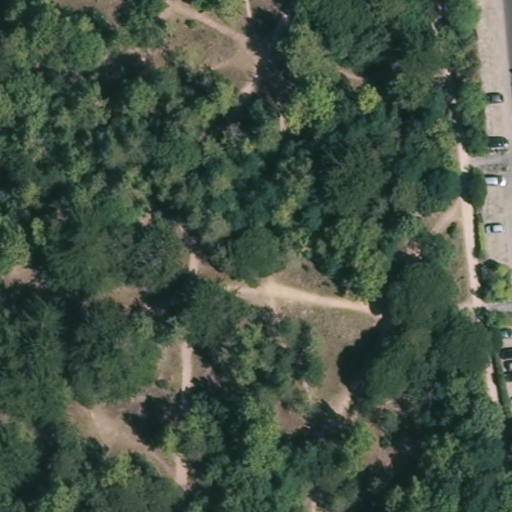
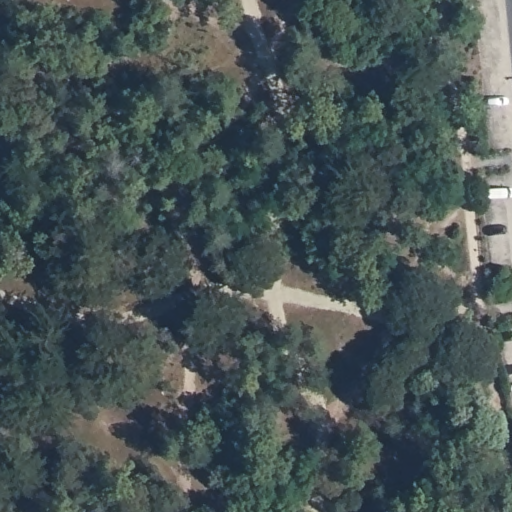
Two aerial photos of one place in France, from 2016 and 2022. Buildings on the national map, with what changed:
unchanged [(461,12),(460,0),(470,0),(470,11),(461,12)]

